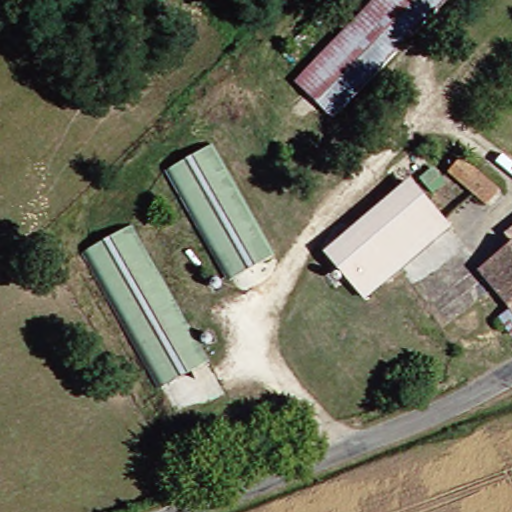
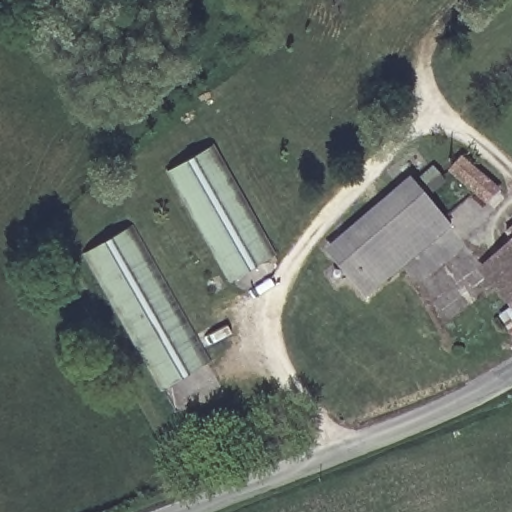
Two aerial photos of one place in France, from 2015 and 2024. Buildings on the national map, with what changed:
demolished [(371,0),(430,0),(328,121),(293,92),(371,0)]
unchanged [(257,262),(225,282),(161,174),(168,170),(205,149),(261,241),(268,255),(257,262)]
unchanged [(474,197),(451,181),(452,172),(441,166),(451,154),(486,180),(474,197)]
unchanged [(362,296),(323,252),(406,184),(442,224),(362,296)]
unchanged [(502,256),(504,254),(496,242),(512,228),(512,269),(502,256)]
unchanged [(202,363),(157,389),(78,258),(121,230),(202,363)]
unchanged [(477,277),(502,256),(512,269),(512,322),(477,277)]

